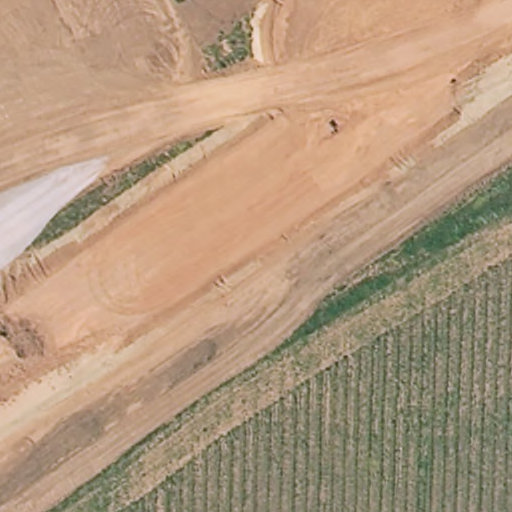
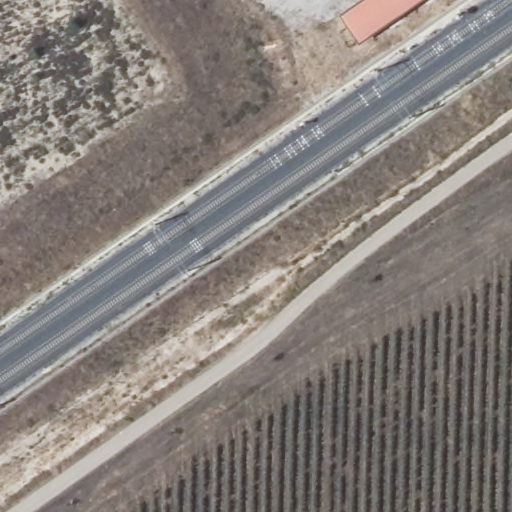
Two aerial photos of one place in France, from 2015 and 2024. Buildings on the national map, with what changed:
new [(343,14),(362,0),(430,0),(364,48),(343,14)]

